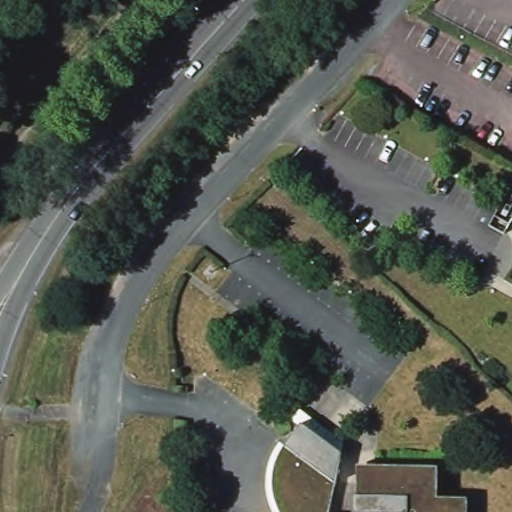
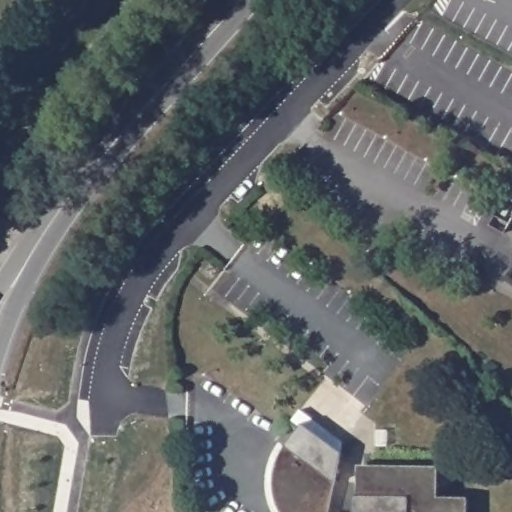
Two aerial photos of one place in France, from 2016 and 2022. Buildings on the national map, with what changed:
unchanged [(512,197),(512,230),(508,236),(495,228),(512,197)]
unchanged [(270,510),(265,498),(263,488),(262,478),(263,469),(264,463),(266,456),(271,447),(283,428),(291,417),(332,451),(321,512),(270,512),(270,510)]
unchanged [(433,495),(465,497),(465,512),(345,512),(345,503),(345,495),(350,494),(351,480),(352,461),(372,461),(435,463),(433,495)]

